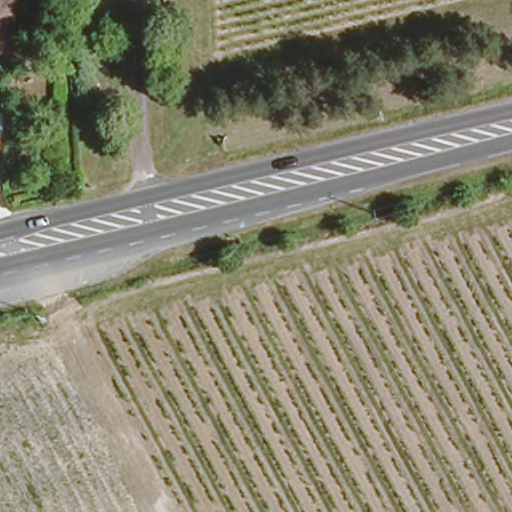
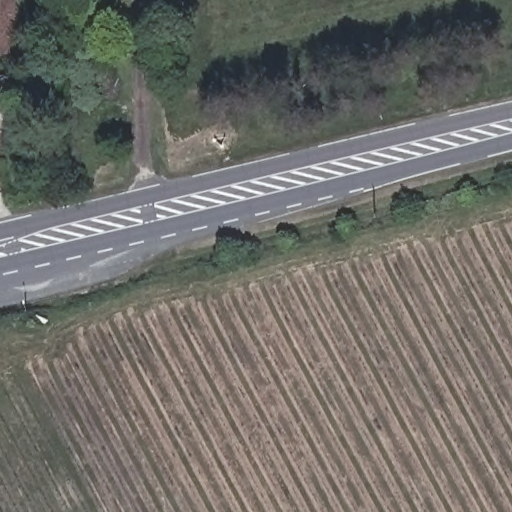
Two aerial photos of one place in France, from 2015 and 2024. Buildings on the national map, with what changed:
unchanged [(0,58),(0,0),(12,0),(12,58),(0,58)]

